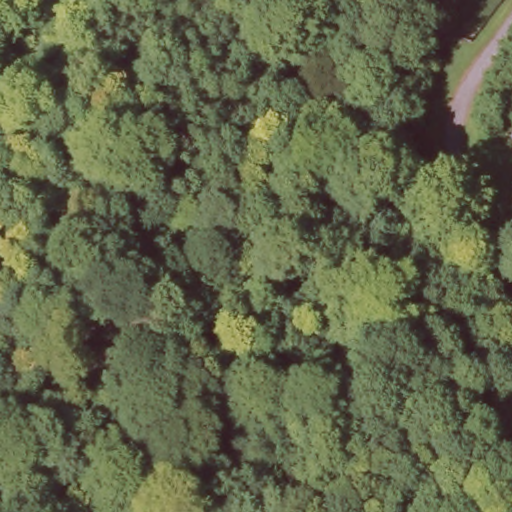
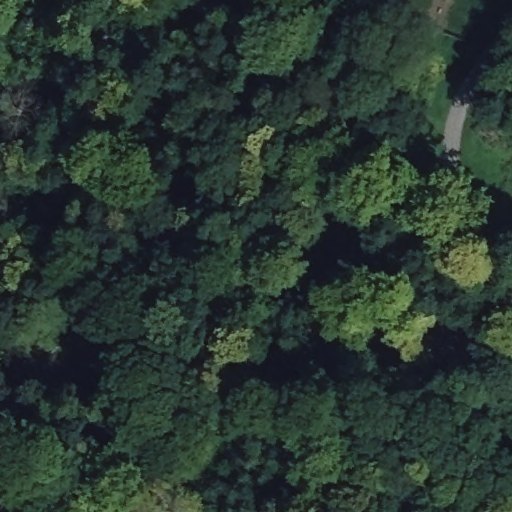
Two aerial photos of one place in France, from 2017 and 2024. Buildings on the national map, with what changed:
unchanged [(431,288),(402,300),(391,247),(415,239),(431,288)]

